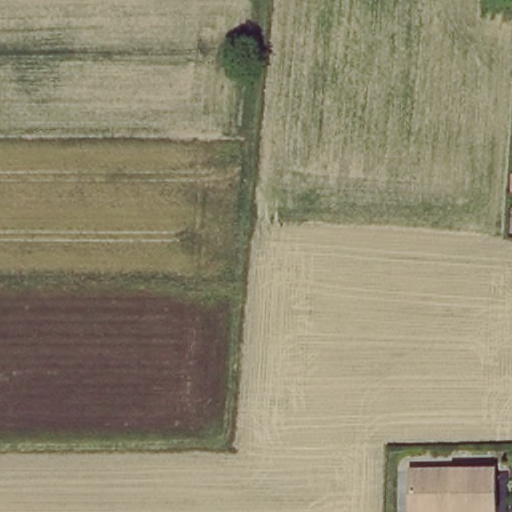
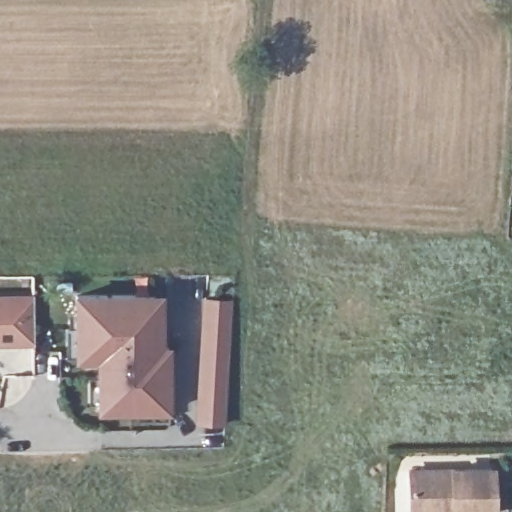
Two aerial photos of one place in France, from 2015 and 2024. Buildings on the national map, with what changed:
new [(152,295),(152,328),(125,328),(125,347),(166,347),(166,407),(97,408),(96,357),(74,357),(74,295),(152,295)]
new [(33,341),(0,341),(0,297),(31,297),(33,341)]
new [(231,301),(223,421),(196,419),(203,299),(231,301)]
unchanged [(409,471),(492,470),(493,512),(409,512),(409,511),(409,471)]

